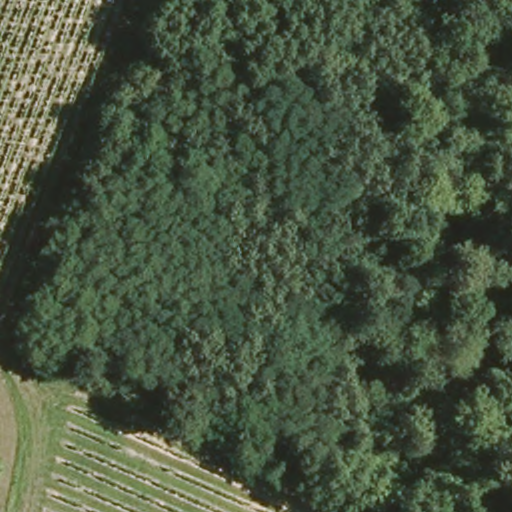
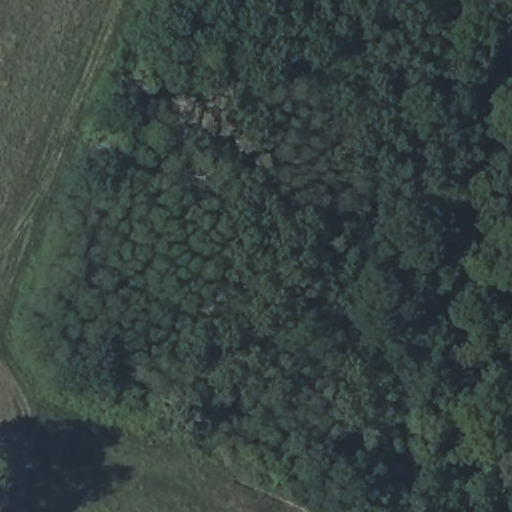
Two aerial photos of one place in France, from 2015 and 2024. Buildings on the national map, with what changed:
[]

